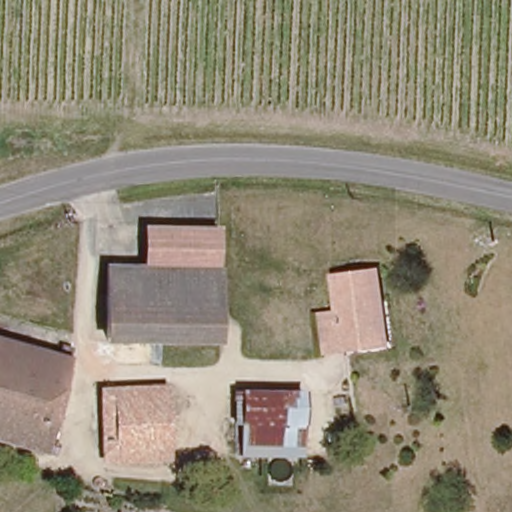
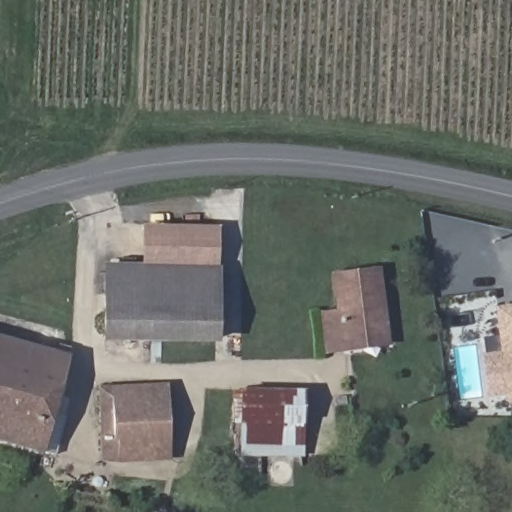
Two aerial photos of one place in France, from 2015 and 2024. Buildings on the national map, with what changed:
unchanged [(144,271),(141,228),(213,225),(215,270),(144,271)]
unchanged [(103,272),(144,271),(215,270),(216,311),(105,313),(103,272)]
unchanged [(346,347),(342,347),(328,348),(326,311),(338,310),(342,310),(340,273),(383,270),(388,331),(389,345),(346,347)]
new [(505,395),(487,398),(481,354),(484,353),(481,338),(497,337),(493,307),(512,305),(512,403),(506,403),(505,395)]
unchanged [(105,313),(216,311),(217,339),(105,342),(105,313)]
unchanged [(43,449),(0,439),(0,342),(65,358),(43,449)]
unchanged [(167,451),(105,458),(99,392),(160,386),(167,451)]
unchanged [(235,444),(237,393),(298,395),(297,446),(235,444)]

